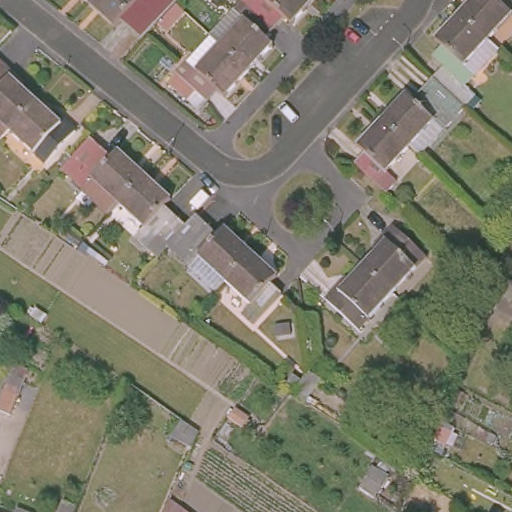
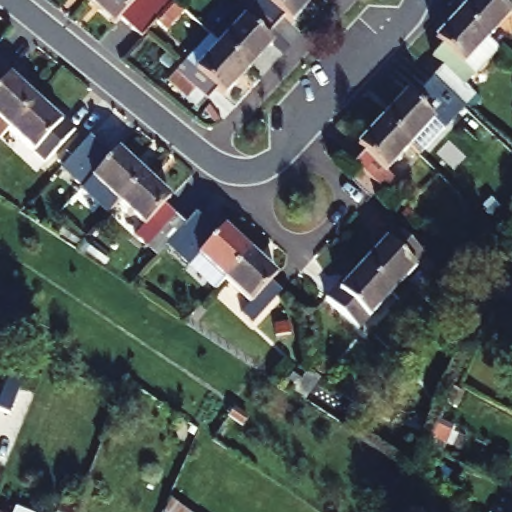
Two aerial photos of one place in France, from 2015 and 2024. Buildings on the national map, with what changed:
unchanged [(87,6),(81,0),(93,0),(87,6)]
unchanged [(170,11),(143,40),(120,18),(110,28),(87,6),(93,0),(157,0),(170,11)]
unchanged [(287,23),(280,17),(268,29),(238,1),(240,0),(308,0),(287,23)]
unchanged [(458,10),(468,0),(512,0),(512,11),(510,9),(485,35),(458,10)]
unchanged [(205,38),(238,1),(268,29),(258,40),(265,46),(242,71),(205,38)]
unchanged [(485,35),(498,47),(475,71),(473,69),(462,80),(474,91),(463,102),(434,75),(445,64),(432,52),(442,40),(436,34),(458,10),(485,35)]
unchanged [(220,97),(211,91),(200,103),(170,76),(205,38),(242,71),(220,97)]
unchanged [(5,77),(30,99),(4,128),(0,133),(0,66),(8,73),(5,77)]
unchanged [(445,123),(436,116),(411,142),(383,116),(407,89),(414,95),(434,75),(463,102),(445,123)]
unchanged [(56,124),(60,120),(72,130),(43,163),(4,128),(30,99),(56,124)]
unchanged [(388,167),(397,175),(385,187),(357,159),(367,148),(360,140),(383,116),(411,142),(388,167)]
unchanged [(65,166),(92,135),(117,156),(125,147),(149,170),(123,198),(113,209),(65,166)]
unchanged [(139,231),(148,221),(123,198),(149,170),(175,194),(167,201),(190,222),(172,242),(162,252),(139,231)]
unchanged [(228,278),(205,256),(197,264),(172,242),(190,222),(198,213),(223,236),(230,228),(255,250),(228,278)]
unchanged [(366,268),(388,244),(383,239),(394,228),(425,258),(392,293),(366,268)]
unchanged [(282,275),(277,282),(287,292),(260,323),(248,312),(255,304),(228,278),(255,250),(282,275)]
unchanged [(357,331),(325,302),(336,290),(342,294),(366,268),(392,293),(357,331)]
unchanged [(490,286),(496,271),(500,273),(512,279),(512,298),(490,286)]
unchanged [(12,414),(0,410),(0,400),(10,372),(25,379),(12,414)]
unchanged [(189,512),(165,512),(170,499),(189,512)]

